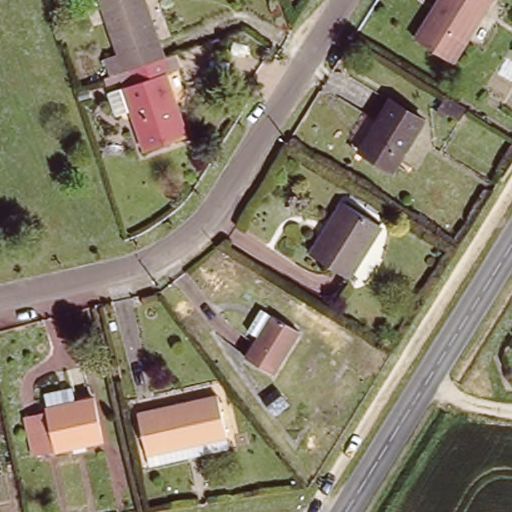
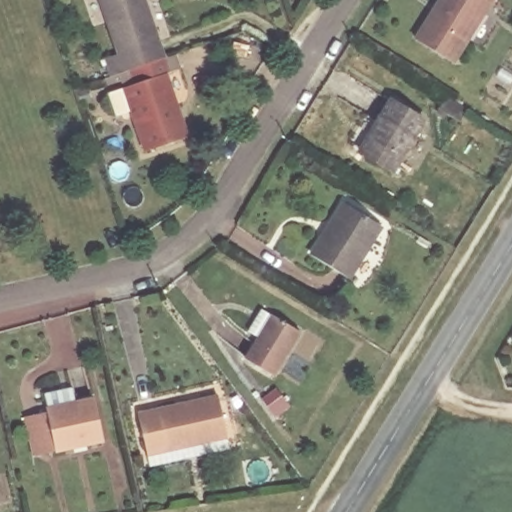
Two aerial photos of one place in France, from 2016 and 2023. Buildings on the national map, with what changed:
unchanged [(165,58),(127,72),(111,79),(105,61),(119,56),(98,0),(143,0),(165,58)]
unchanged [(457,60),(420,37),(443,0),(494,0),(457,60)]
unchanged [(170,74),(165,77),(185,134),(145,149),(125,92),(132,89),(127,72),(165,58),(170,74)]
unchanged [(437,100),(446,86),(462,96),(454,111),(437,100)]
unchanged [(395,171),(355,144),(371,119),(380,125),(395,104),(427,123),(395,171)]
unchanged [(351,278),(319,258),(352,205),(382,227),(351,278)]
unchanged [(282,375),(255,360),(264,345),(253,338),(268,312),(303,337),(282,375)]
unchanged [(50,413),(46,397),(72,391),(75,407),(95,402),(102,444),(59,454),(50,413)]
unchanged [(147,456),(140,418),(222,402),(229,440),(147,456)]

